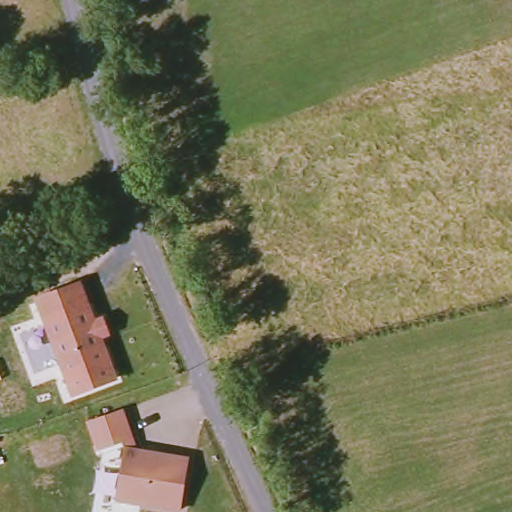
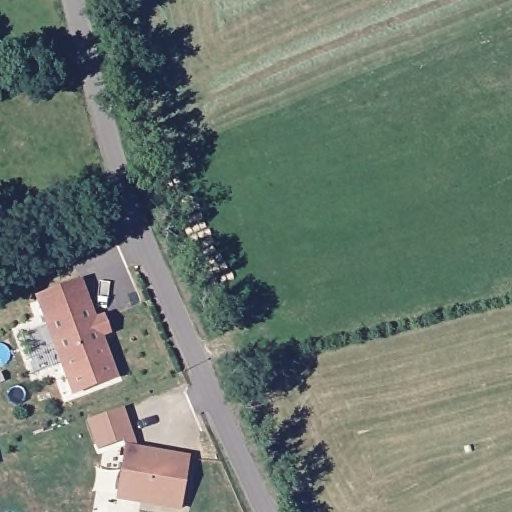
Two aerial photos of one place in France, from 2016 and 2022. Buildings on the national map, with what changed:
unchanged [(82,283),(96,322),(104,319),(109,333),(101,336),(117,378),(75,394),(39,299),(82,283)]
unchanged [(138,451),(125,448),(123,441),(97,449),(85,421),(123,408),(138,451)]
unchanged [(118,491),(125,448),(190,460),(182,509),(132,501),(117,498),(118,491)]

